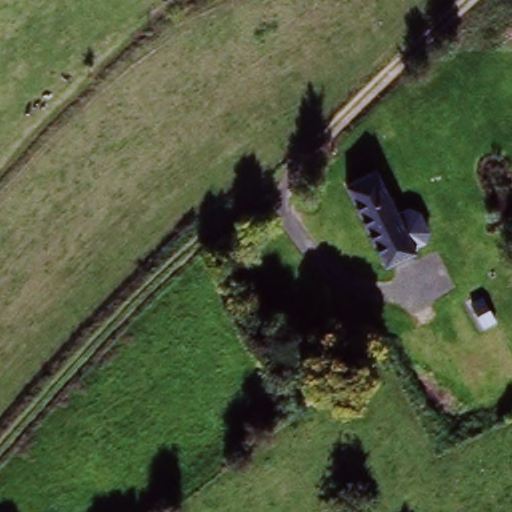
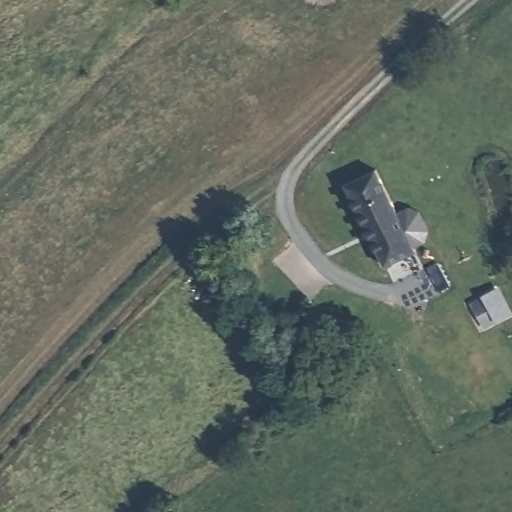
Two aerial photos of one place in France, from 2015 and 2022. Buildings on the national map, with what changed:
unchanged [(428,241),(417,245),(418,249),(383,263),(350,201),(343,187),(381,170),(401,212),(414,207),(423,210),(425,215),(431,230),(428,241)]

